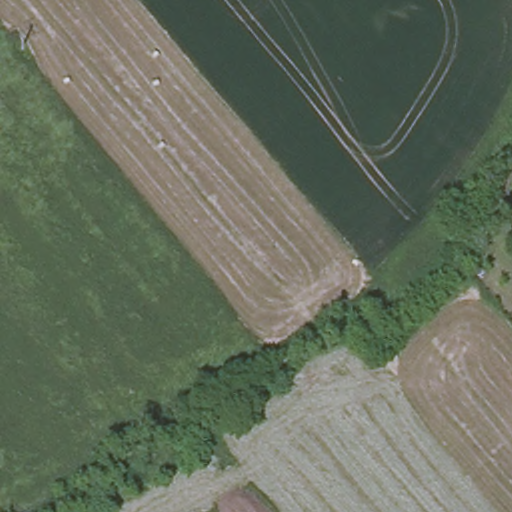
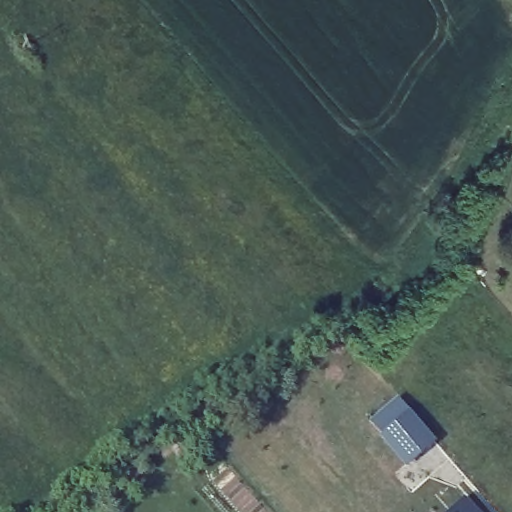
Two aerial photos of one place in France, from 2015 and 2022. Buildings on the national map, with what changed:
new [(437,441),(407,464),(370,419),(398,395),(437,441)]
new [(473,509),(476,512),(447,512),(463,498),(473,509)]

